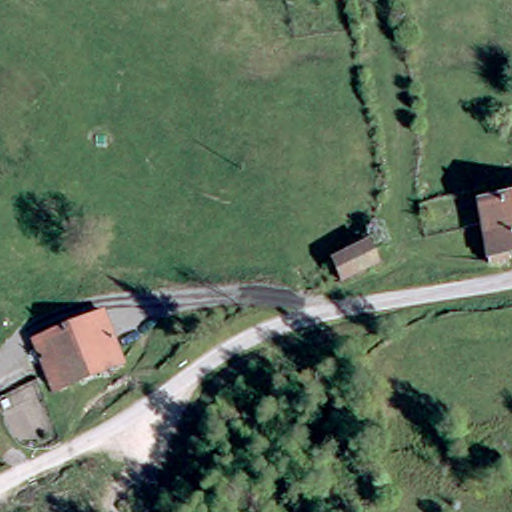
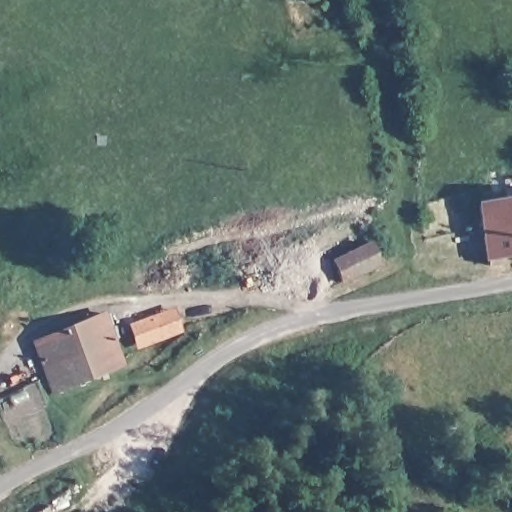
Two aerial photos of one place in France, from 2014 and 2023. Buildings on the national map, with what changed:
unchanged [(502,250),(503,256),(485,261),(477,198),(512,194),(512,249),(502,250)]
unchanged [(370,245),(378,263),(339,282),(330,263),(370,245)]
new [(175,307),(185,332),(137,349),(129,324),(175,307)]
unchanged [(122,363),(52,391),(46,376),(32,340),(102,314),(122,363)]

